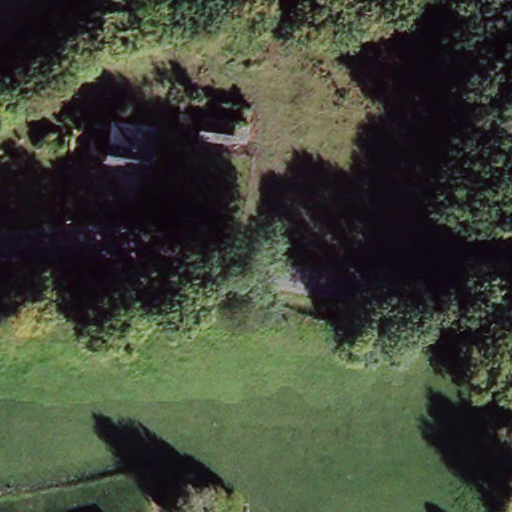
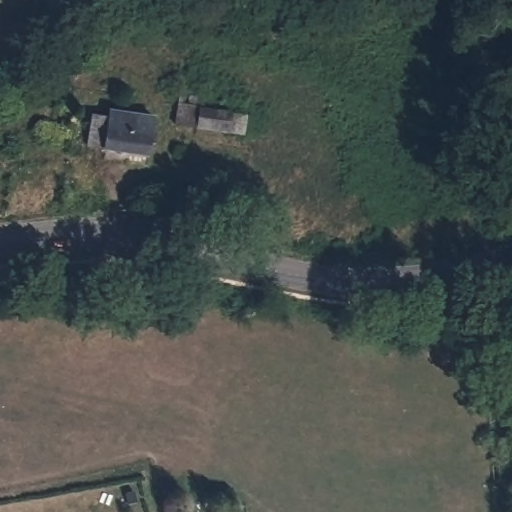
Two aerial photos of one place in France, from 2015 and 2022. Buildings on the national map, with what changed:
unchanged [(90,146),(87,146),(92,115),(109,118),(110,111),(153,118),(150,137),(145,137),(143,155),(90,146)]
unchanged [(243,140),(227,137),(196,133),(175,130),(177,111),(230,119),(245,121),(243,140)]

